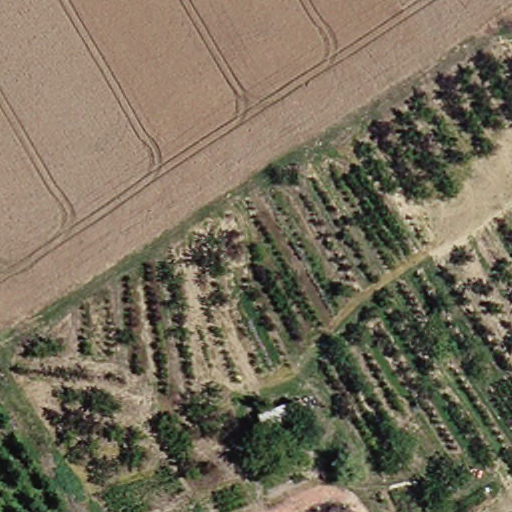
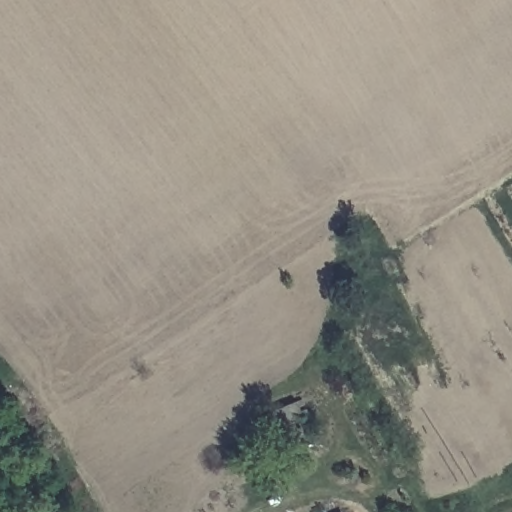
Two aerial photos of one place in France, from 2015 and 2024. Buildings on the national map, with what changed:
unchanged [(274,424),(268,410),(303,396),(307,410),(274,424)]

